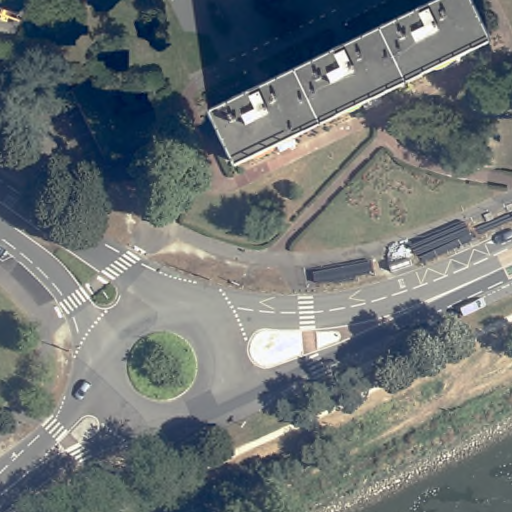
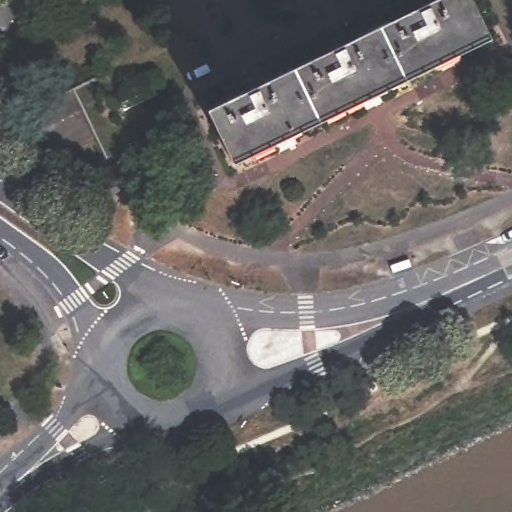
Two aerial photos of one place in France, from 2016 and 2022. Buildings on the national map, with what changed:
unchanged [(442,0),(471,0),(489,38),(233,160),(209,112),(442,0)]

